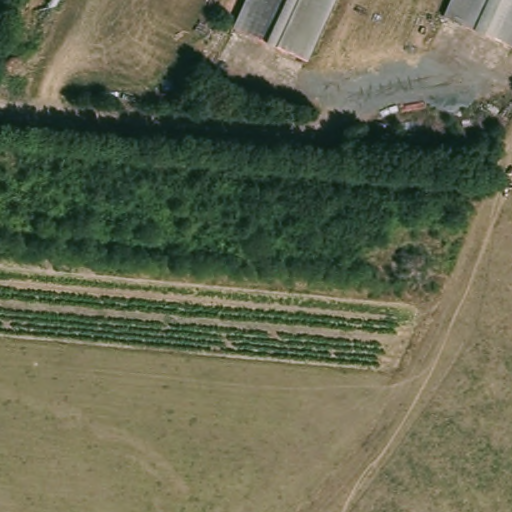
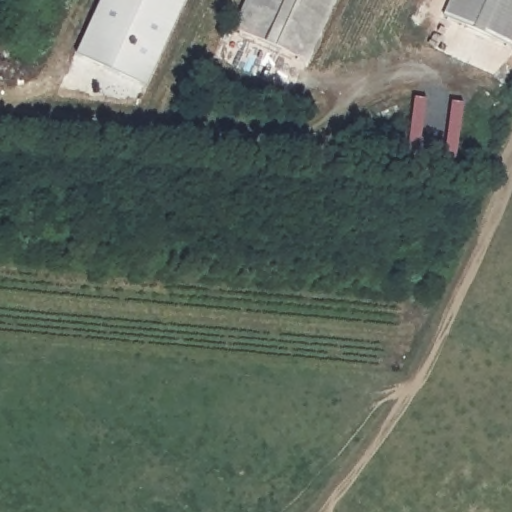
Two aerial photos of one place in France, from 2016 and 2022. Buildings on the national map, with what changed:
new [(146,84),(75,53),(100,0),(185,0),(146,84)]
unchanged [(311,59),(242,29),(255,0),(338,0),(311,59)]
unchanged [(512,47),(446,16),(454,0),(512,0),(512,47)]

